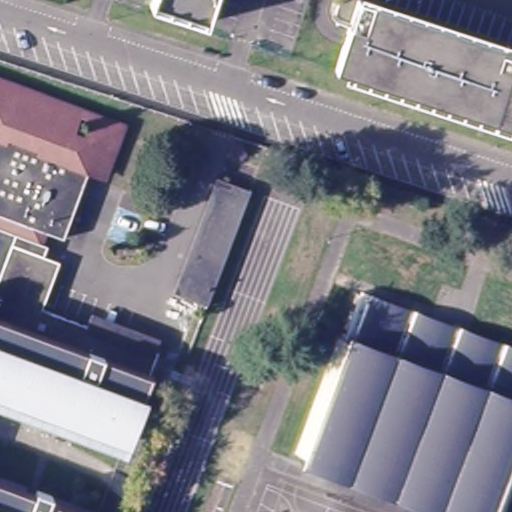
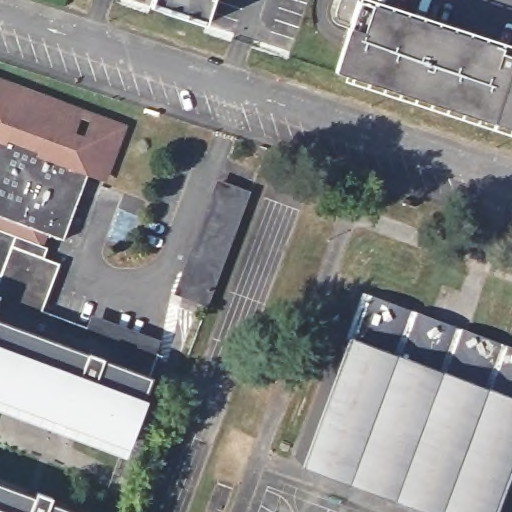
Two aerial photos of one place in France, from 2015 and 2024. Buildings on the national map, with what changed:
unchanged [(205,25),(149,6),(151,0),(215,0),(205,25)]
unchanged [(350,24),(334,18),(340,0),(347,0),(512,52),(512,128),(335,71),(350,24)]
unchanged [(128,447),(0,398),(0,87),(123,133),(105,180),(94,175),(69,241),(45,232),(37,255),(64,266),(46,313),(93,330),(163,357),(128,447)]
unchanged [(183,293),(187,282),(221,193),(226,181),(255,192),(250,205),(217,293),(213,304),(183,293)]
unchanged [(357,296),(512,356),(512,512),(438,512),(297,459),(357,296)]
unchanged [(163,357),(93,330),(98,317),(168,344),(163,357)]
unchanged [(0,512),(0,484),(74,512),(0,512)]

